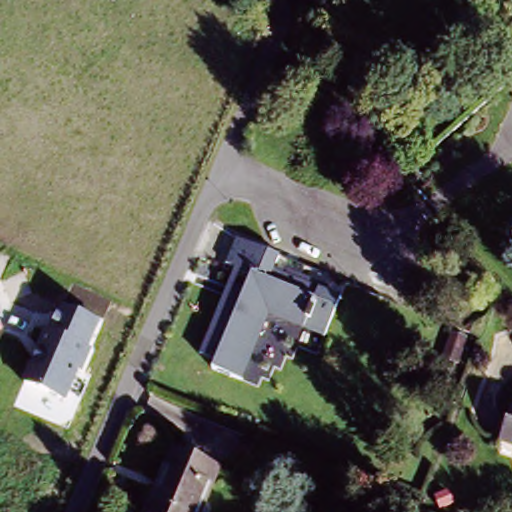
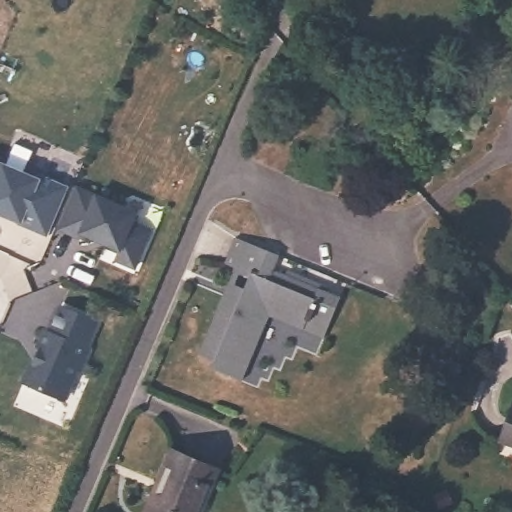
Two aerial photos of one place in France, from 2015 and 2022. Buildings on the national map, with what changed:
new [(131,219),(150,228),(133,265),(113,257),(118,247),(81,230),(79,235),(58,227),(54,224),(50,234),(45,232),(18,220),(19,219),(0,210),(0,161),(37,177),(38,173),(66,185),(57,204),(62,207),(72,183),(77,185),(135,210),(131,219)]
unchanged [(322,338),(300,329),(267,315),(239,385),(210,373),(215,361),(200,355),(236,272),(222,267),(235,239),(275,255),(270,270),(317,289),(338,299),(322,338)]
unchanged [(27,383),(60,305),(100,320),(90,347),(93,348),(82,372),(79,371),(67,401),(27,383)]
unchanged [(502,440),(512,409),(512,444),(502,440)]
unchanged [(220,464),(201,512),(144,512),(152,492),(165,498),(184,450),(220,464)]

